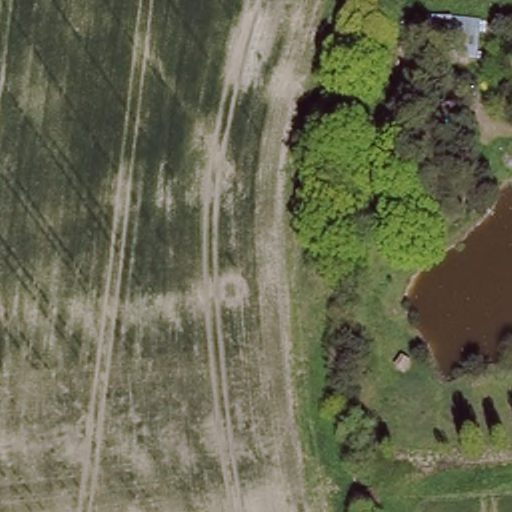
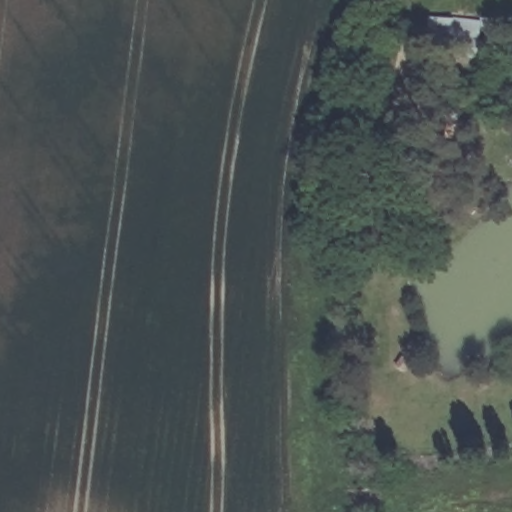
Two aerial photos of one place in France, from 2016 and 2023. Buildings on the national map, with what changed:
unchanged [(475,18),(471,60),(451,59),(452,16),(475,18)]

